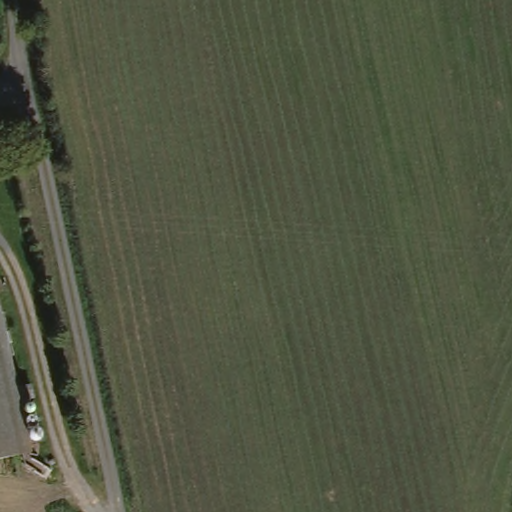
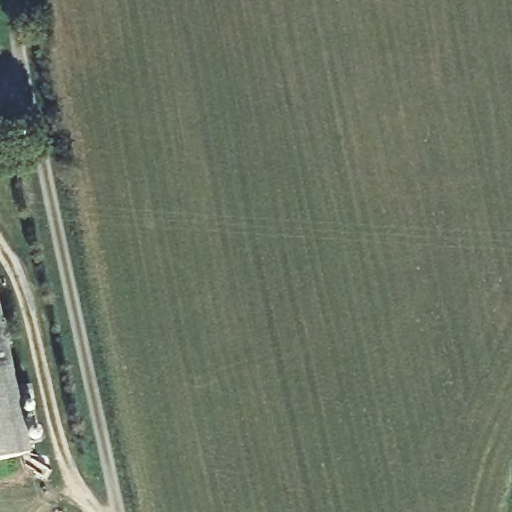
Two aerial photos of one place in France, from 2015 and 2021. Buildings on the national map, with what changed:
unchanged [(38,397),(49,440),(34,446),(35,452),(0,459),(0,290),(25,402),(38,397)]

